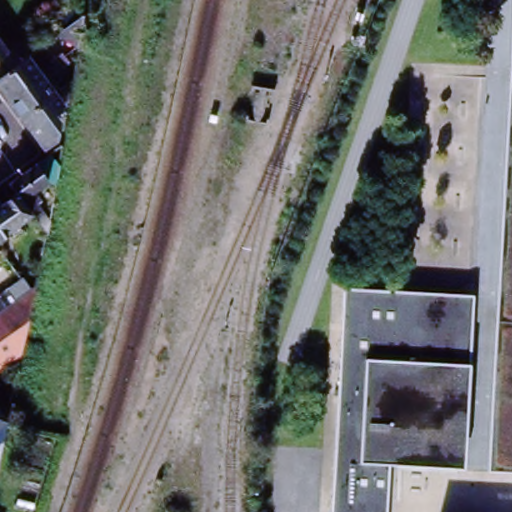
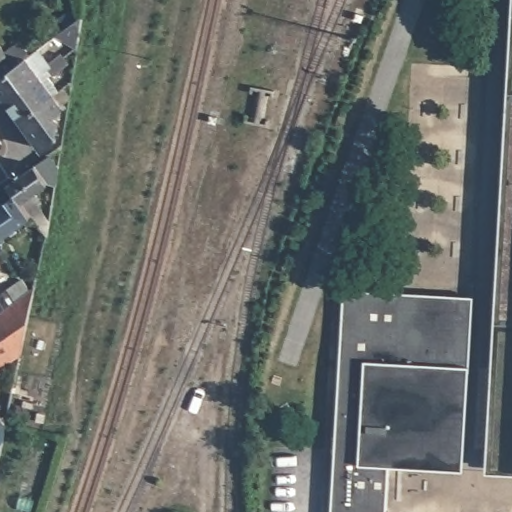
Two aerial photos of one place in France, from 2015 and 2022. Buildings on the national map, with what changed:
unchanged [(0,53),(0,38),(32,15),(42,27),(75,3),(82,12),(82,14),(77,45),(65,25),(29,51),(20,39),(0,53)]
unchanged [(53,112),(57,119),(53,137),(42,146),(20,116),(7,97),(0,89),(0,53),(20,39),(29,51),(25,54),(40,72),(53,91),(61,102),(60,107),(53,112)]
unchanged [(64,55),(67,59),(51,71),(47,66),(45,64),(62,51),(64,55)]
unchanged [(492,453),(512,127),(512,455),(492,453)]
unchanged [(8,181),(21,171),(35,161),(45,155),(47,152),(49,151),(57,165),(56,173),(55,182),(54,182),(46,179),(27,192),(33,201),(35,200),(48,219),(48,220),(45,234),(44,234),(30,212),(15,191),(8,181)]
unchanged [(0,202),(15,191),(30,212),(0,233),(0,202)]
unchanged [(0,370),(0,302),(8,296),(20,288),(23,292),(35,285),(32,295),(18,363),(9,363),(0,370)]
unchanged [(398,291),(395,331),(466,335),(459,452),(389,448),(388,465),(385,505),(385,512),(329,512),(342,288),(398,291)]
unchanged [(468,295),(466,335),(395,331),(398,291),(468,295)]
unchanged [(3,425),(0,427),(0,417),(3,422),(3,425)]

